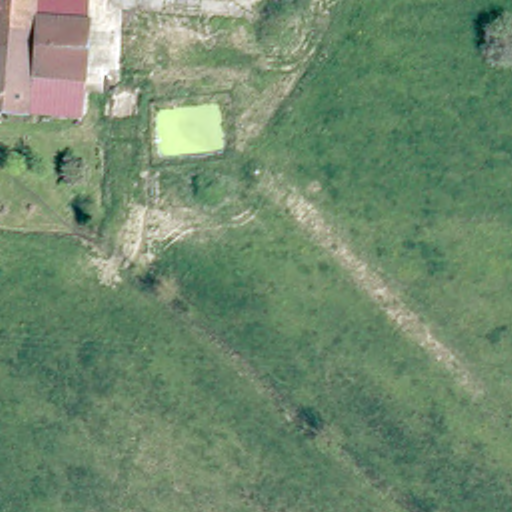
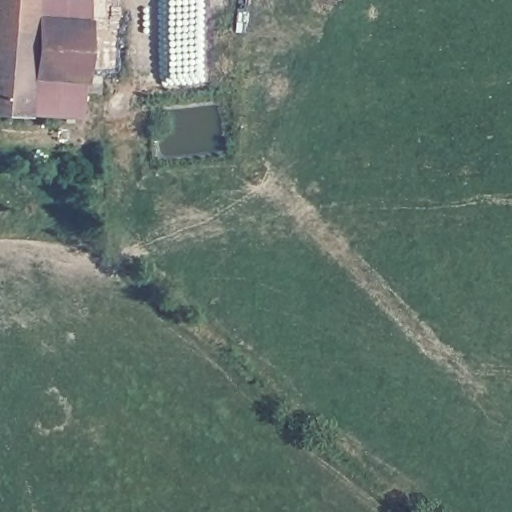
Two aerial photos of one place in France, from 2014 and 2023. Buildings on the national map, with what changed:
unchanged [(0,112),(0,0),(61,0),(87,4),(73,98),(70,125),(37,119),(0,112)]
unchanged [(87,4),(61,0),(88,0),(87,4)]

